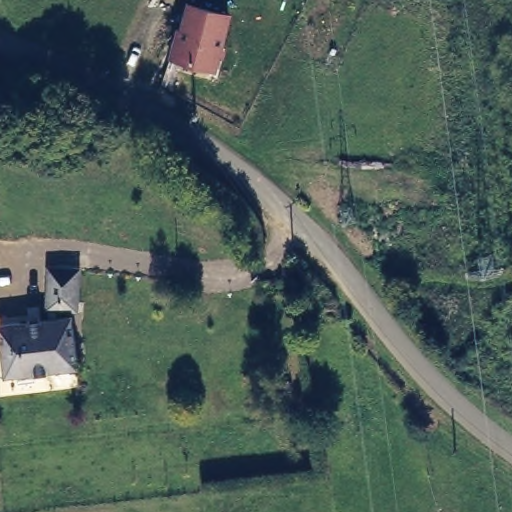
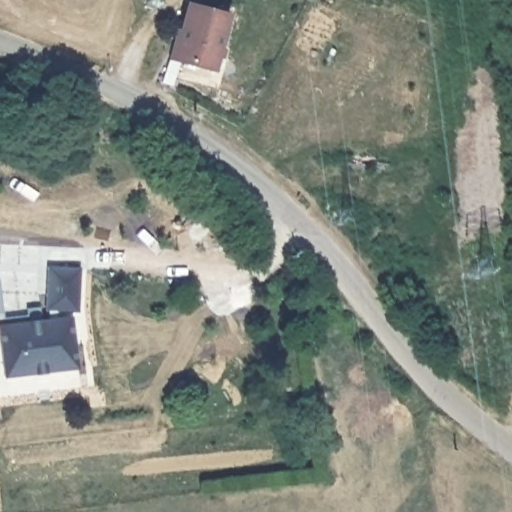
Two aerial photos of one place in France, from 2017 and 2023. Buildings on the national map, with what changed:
unchanged [(230,13),(222,47),(226,48),(217,72),(169,60),(177,28),(180,30),(187,1),(230,13)]
unchanged [(0,355),(0,323),(47,317),(53,265),(80,266),(74,318),(75,369),(2,377),(0,355)]

